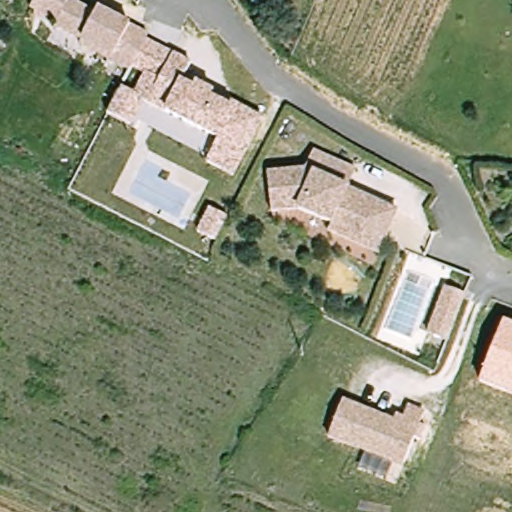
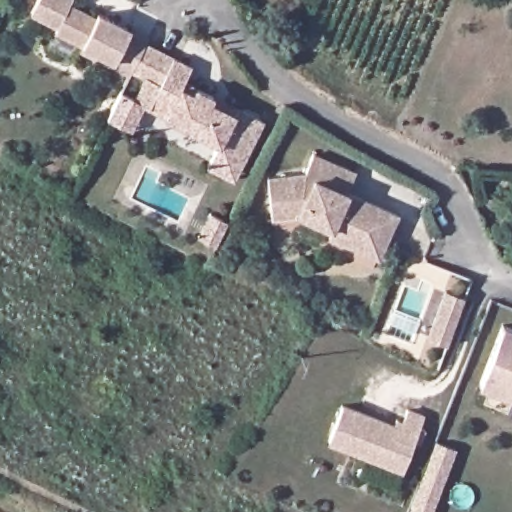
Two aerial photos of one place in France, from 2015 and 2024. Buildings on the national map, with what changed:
unchanged [(63,25),(37,11),(43,0),(77,0),(75,2),(101,16),(104,12),(153,39),(151,44),(145,55),(140,65),(138,67),(135,74),(85,47),(76,62),(50,49),(61,29),(63,25)]
unchanged [(223,172),(210,165),(221,143),(147,103),(133,128),(111,116),(125,90),(139,98),(151,75),(138,67),(140,65),(145,55),(151,44),(196,67),(188,80),(266,121),(239,172),(236,179),(223,172)]
unchanged [(370,252),(331,234),(335,227),(301,212),(275,215),(271,177),(309,173),(317,154),(360,174),(351,192),(401,215),(392,235),(381,257),(370,252)]
new [(216,225),(234,235),(222,258),(204,249),(216,225)]
unchanged [(443,290),(464,298),(448,342),(426,335),(443,290)]
unchanged [(502,325),(512,329),(512,400),(477,386),(502,325)]
unchanged [(427,417),(422,428),(428,431),(422,444),(416,441),(403,470),(330,435),(346,400),(396,425),(399,417),(406,421),(411,410),(427,417)]
new [(418,512),(409,508),(436,441),(458,450),(433,512),(418,512)]

